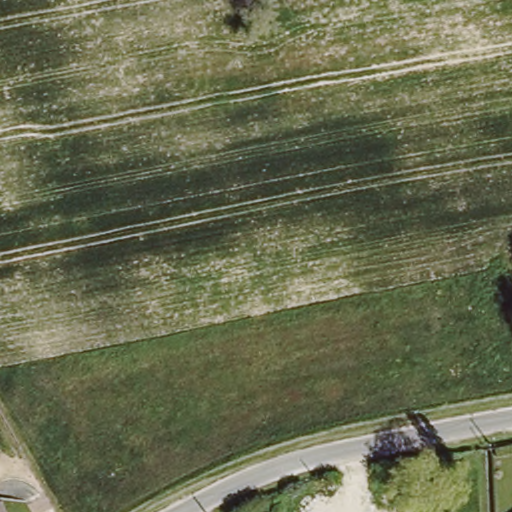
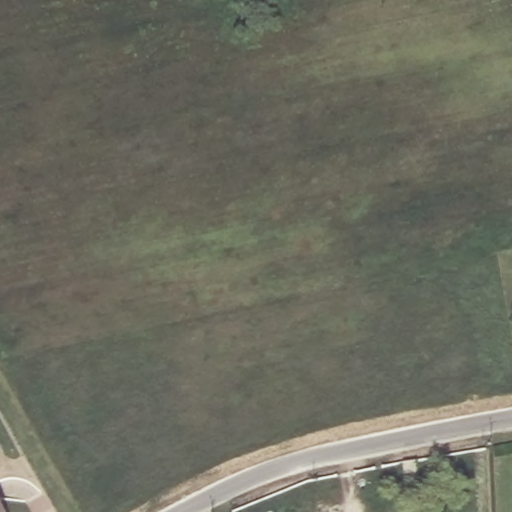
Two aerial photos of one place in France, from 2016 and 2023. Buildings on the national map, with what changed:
unchanged [(3,512),(0,512),(0,505),(3,512)]

